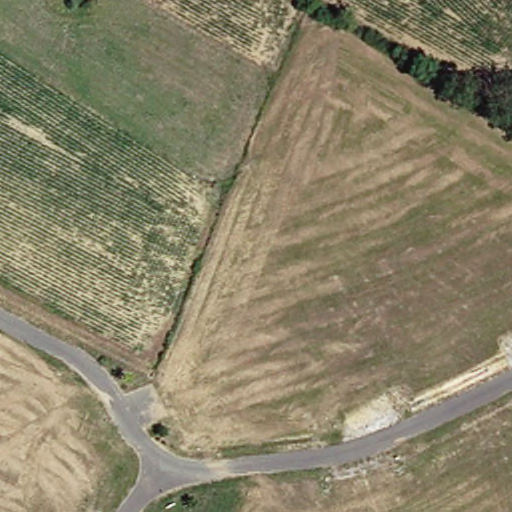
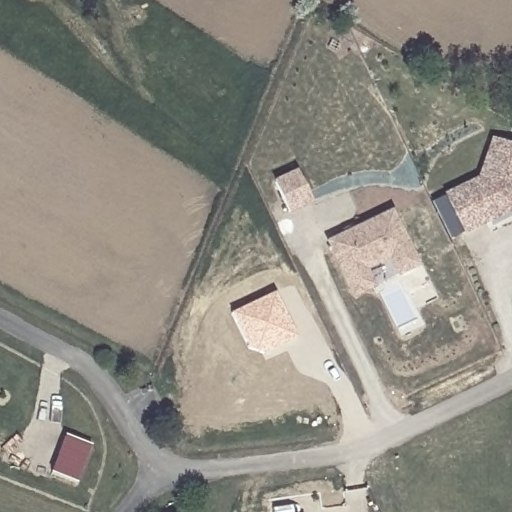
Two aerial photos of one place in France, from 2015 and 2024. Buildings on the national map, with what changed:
new [(463,232),(446,197),(481,181),(495,140),(512,145),(512,209),(463,232)]
new [(288,216),(272,182),(295,171),(312,206),(288,216)]
new [(392,211),(416,263),(399,272),(390,255),(363,268),(372,285),(354,293),(329,241),(392,211)]
new [(263,356),(245,349),(229,315),(274,292),(297,338),(263,356)]
new [(69,438),(94,448),(87,467),(79,487),(54,477),(62,457),(69,438)]

